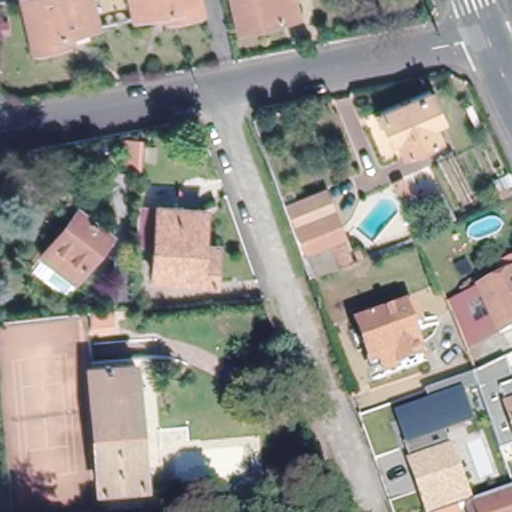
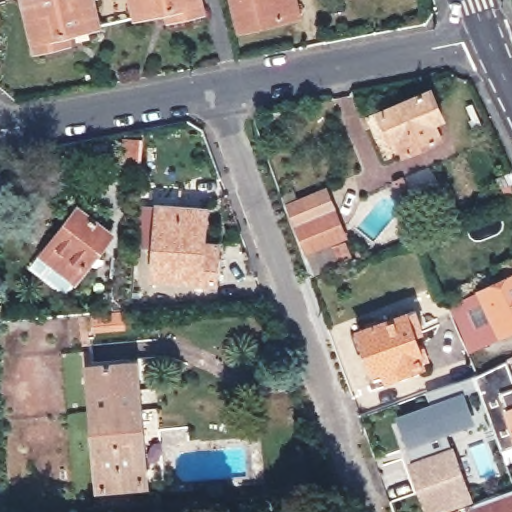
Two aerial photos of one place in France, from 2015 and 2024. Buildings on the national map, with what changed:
unchanged [(102,21),(60,31),(62,41),(41,45),(31,0),(97,0),(102,21)]
unchanged [(207,7),(186,12),(184,2),(141,12),(138,0),(205,0),(207,7)]
unchanged [(297,15),(240,28),(234,0),(293,0),(297,15)]
unchanged [(433,81),(451,120),(437,127),(444,143),(399,162),(381,105),(433,81)]
unchanged [(310,196),(325,190),(343,237),(307,251),(288,204),(310,196)]
unchanged [(205,209),(202,243),(218,244),(216,281),(154,277),(159,205),(205,209)]
unchanged [(79,209),(111,233),(75,280),(42,255),(79,209)]
unchanged [(340,266),(333,247),(343,244),(350,263),(340,266)]
unchanged [(353,251),(359,249),(362,258),(357,260),(353,251)]
unchanged [(112,306),(116,253),(136,253),(132,304),(112,306)]
unchanged [(483,288),(507,277),(501,264),(512,258),(512,327),(504,331),(483,288)]
unchanged [(476,345),(455,302),(483,288),(504,331),(476,345)]
unchanged [(114,324),(94,326),(92,307),(112,306),(114,324)]
unchanged [(417,347),(421,346),(427,363),(422,364),(423,365),(385,378),(382,368),(375,371),(361,330),(416,311),(421,326),(423,332),(415,335),(413,336),(417,347)]
unchanged [(136,364),(146,480),(102,484),(92,368),(136,364)]
unchanged [(506,367),(512,386),(512,391),(496,397),(501,412),(492,414),(482,379),(506,367)]
unchanged [(408,450),(428,443),(424,432),(412,436),(407,423),(434,413),(428,398),(478,380),(482,392),(466,398),(470,410),(448,418),(455,435),(448,437),(456,457),(475,509),(469,512),(468,512),(430,512),(415,470),(408,450)]
unchanged [(508,409),(512,408),(512,421),(508,409)]
unchanged [(506,423),(512,421),(512,444),(506,423)]
unchanged [(475,509),(482,506),(512,495),(512,512),(469,512),(475,509)]

